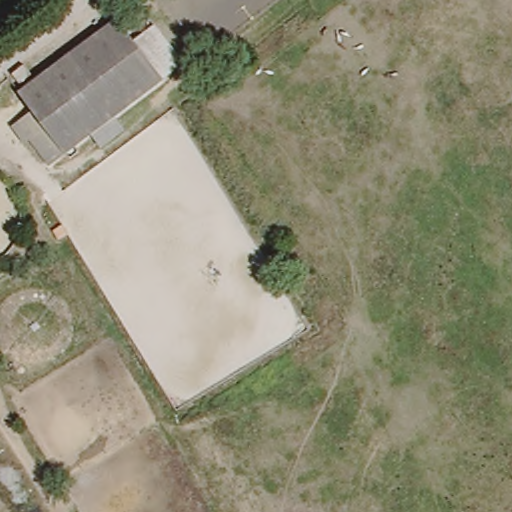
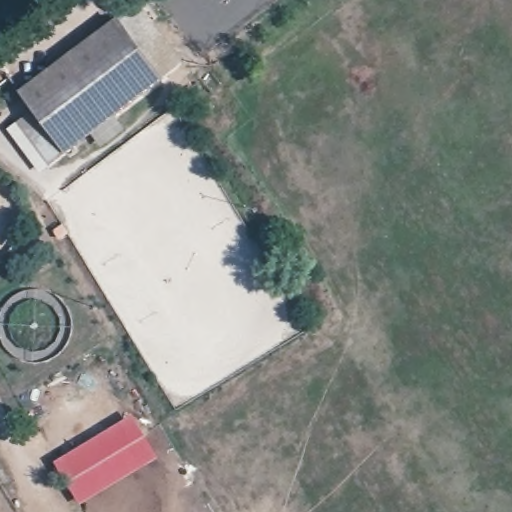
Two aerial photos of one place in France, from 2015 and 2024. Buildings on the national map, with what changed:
unchanged [(65,151),(32,109),(18,92),(114,17),(160,76),(65,151)]
unchanged [(65,151),(49,163),(16,121),(32,109),(65,151)]
new [(155,460),(78,505),(50,462),(127,416),(155,460)]

